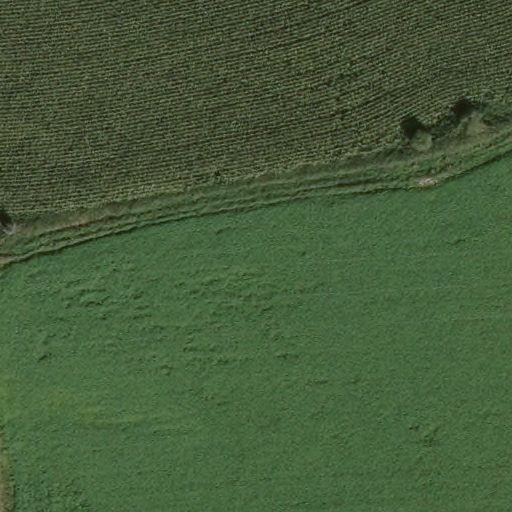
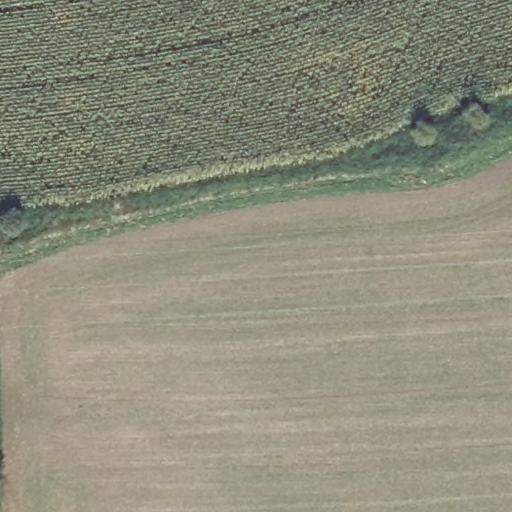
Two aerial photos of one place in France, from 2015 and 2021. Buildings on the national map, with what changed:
[]

